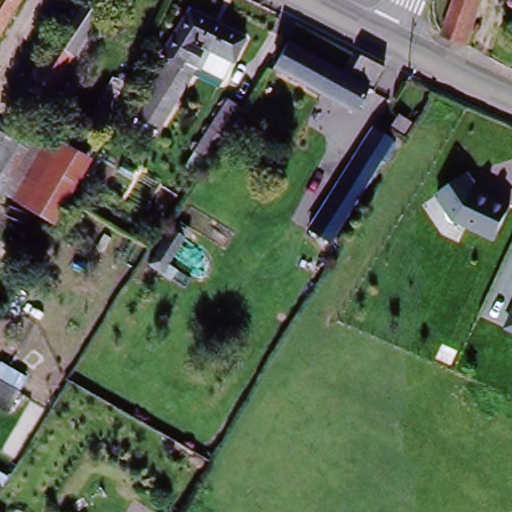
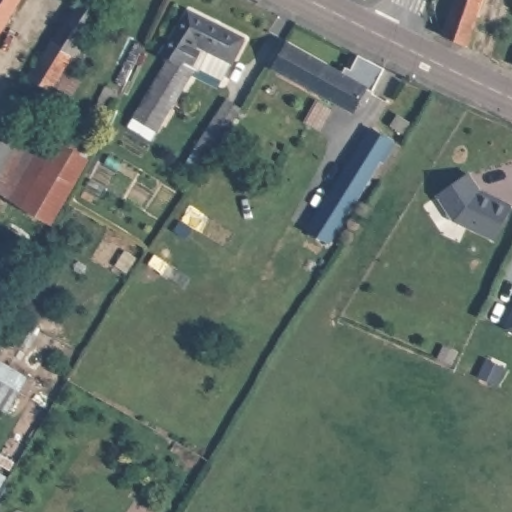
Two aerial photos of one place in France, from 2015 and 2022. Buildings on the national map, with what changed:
unchanged [(0,27),(0,0),(17,0),(0,27)]
unchanged [(97,20),(36,116),(16,104),(78,6),(82,0),(94,0),(105,7),(97,20)]
unchanged [(463,54),(441,45),(456,0),(481,0),(463,54)]
unchanged [(146,124),(175,72),(181,61),(159,50),(182,7),(239,39),(227,60),(207,50),(196,70),(193,68),(187,80),(158,130),(146,124)]
unchanged [(344,75),(349,67),(354,69),(360,55),(387,69),(376,91),(369,87),(356,112),(274,69),(288,45),(344,75)]
unchanged [(192,156),(204,139),(226,105),(236,111),(241,115),(219,145),(205,165),(192,156)]
unchanged [(88,160),(51,221),(0,191),(0,174),(17,146),(29,125),(88,160)]
unchanged [(372,131),(390,141),(329,244),(326,241),(311,233),(372,131)]
unchanged [(17,146),(0,174),(0,136),(17,146)]
unchanged [(448,224),(431,200),(462,177),(474,194),(504,209),(489,242),(448,224)]
unchanged [(162,269),(154,280),(143,272),(169,234),(181,242),(162,269)]
unchanged [(512,333),(508,330),(512,321),(512,333)]
unchanged [(18,397),(7,416),(0,412),(0,386),(18,397)]

